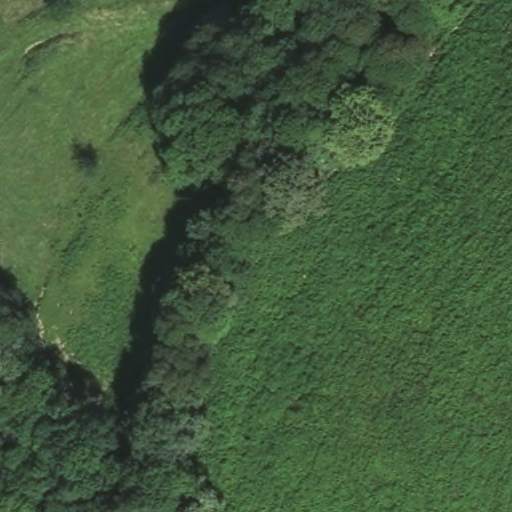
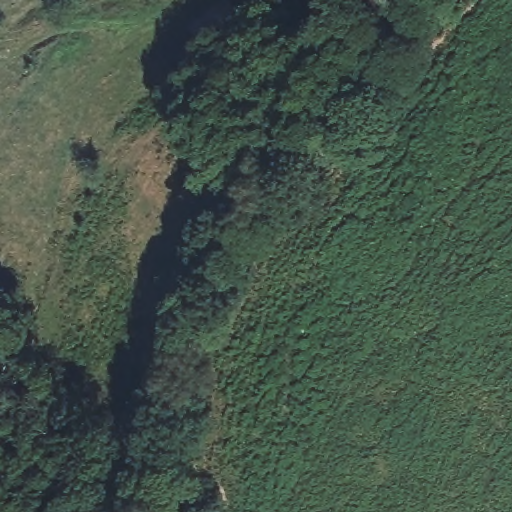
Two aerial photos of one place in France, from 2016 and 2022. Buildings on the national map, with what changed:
unchanged [(219,0),(223,0),(236,19),(198,50),(187,24),(219,0)]

